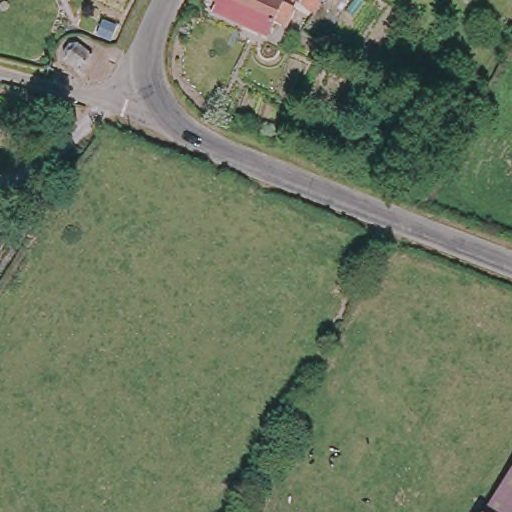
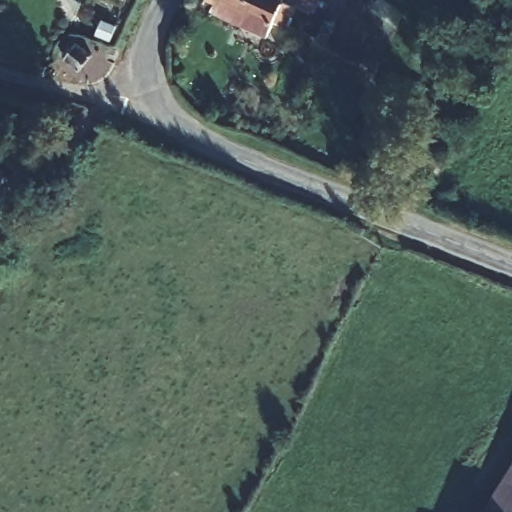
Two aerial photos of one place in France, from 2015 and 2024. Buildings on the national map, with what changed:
unchanged [(272,24),(265,38),(212,16),(217,6),(205,0),(273,0),(290,8),(280,27),(272,24)]
unchanged [(317,1),(310,13),(293,2),(290,0),(315,0),(317,1)]
unchanged [(81,71),(65,59),(63,53),(63,47),(68,42),(73,44),(80,45),(93,55),(81,71)]
unchanged [(512,458),(512,512),(486,512),(480,508),(512,458)]
unchanged [(484,512),(485,510),(487,512),(484,512)]

